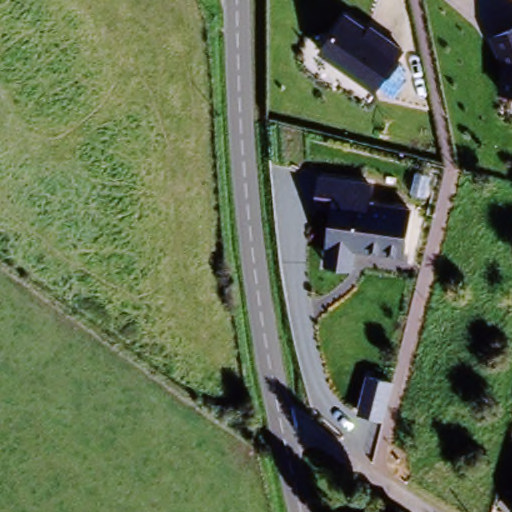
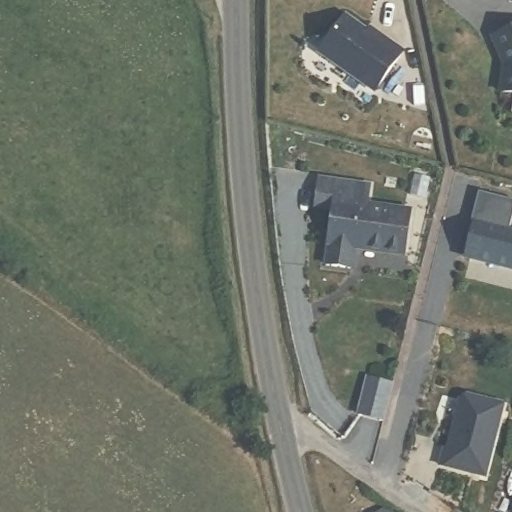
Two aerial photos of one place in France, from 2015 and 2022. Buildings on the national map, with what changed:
unchanged [(316,55),(343,15),(365,32),(367,27),(402,50),(373,96),(316,55)]
unchanged [(512,30),(512,96),(497,94),(500,67),(488,39),(512,30)]
unchanged [(315,209),(320,180),(369,187),(367,206),(410,212),(405,256),(329,246),(333,211),(315,209)]
new [(482,194),(479,192),(480,191),(512,200),(512,222),(510,231),(512,232),(512,269),(466,257),(475,223),(482,194)]
unchanged [(383,424),(358,417),(367,381),(393,387),(383,424)]
new [(445,451),(449,452),(462,400),(468,397),(504,406),(485,479),(441,467),(445,451)]
unchanged [(512,503),(512,512),(510,512),(512,503)]
unchanged [(381,508),(383,512),(374,512),(381,508)]

